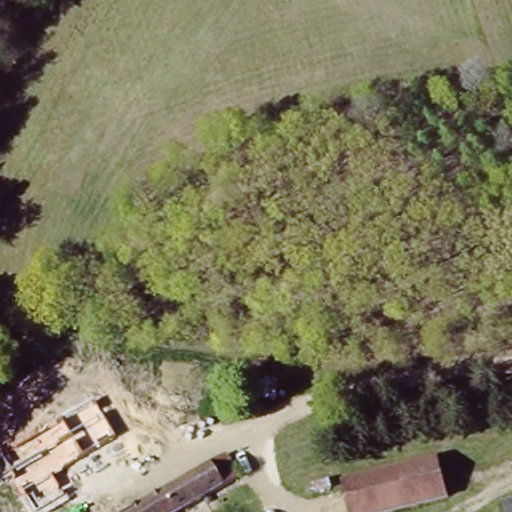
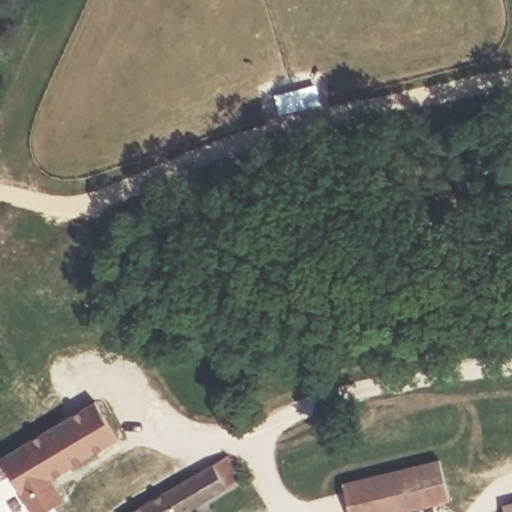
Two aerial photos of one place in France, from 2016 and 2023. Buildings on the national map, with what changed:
new [(62,500),(39,512),(31,512),(10,473),(0,478),(0,454),(96,399),(120,438),(50,477),(62,500)]
demolished [(126,428),(75,467),(85,480),(73,491),(40,433),(88,400),(95,410),(106,403),(126,428)]
unchanged [(184,512),(135,512),(222,452),(237,476),(184,512)]
unchanged [(432,512),(347,512),(338,483),(437,452),(450,489),(455,505),(432,512)]
unchanged [(512,510),(512,512),(507,512),(512,510)]

